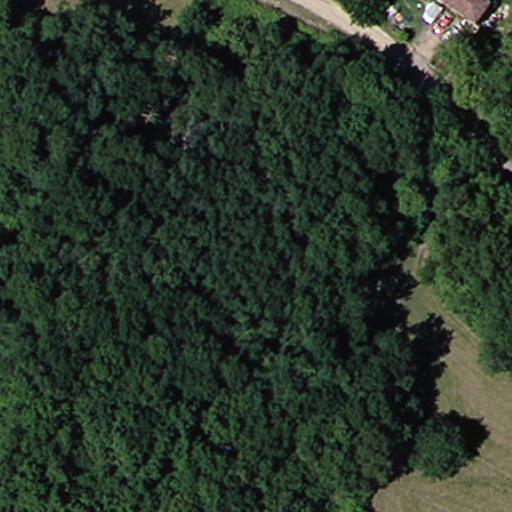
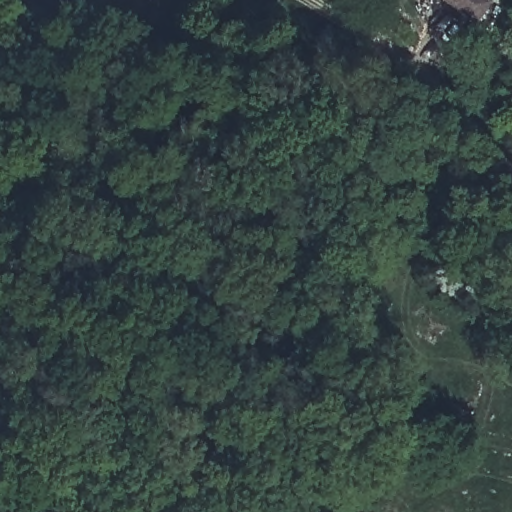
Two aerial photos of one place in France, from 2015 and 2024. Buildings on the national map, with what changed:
unchanged [(481,20),(448,0),(492,0),(481,20)]

